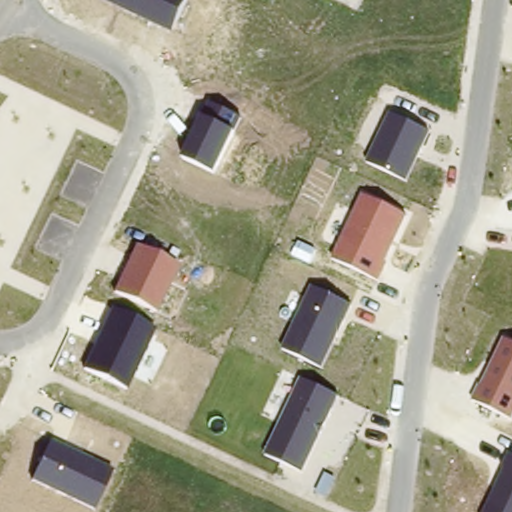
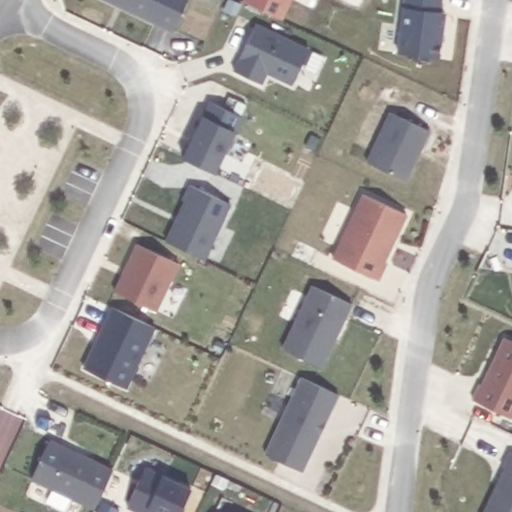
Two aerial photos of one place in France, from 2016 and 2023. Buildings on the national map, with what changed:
unchanged [(173,34),(101,0),(188,0),(173,34)]
new [(242,0),(293,0),(283,21),(241,1),(242,0)]
new [(397,49),(381,47),(383,26),(400,28),(402,6),(404,6),(404,0),(442,0),(442,11),(446,12),(442,59),(397,53),(397,49)]
new [(255,22),(310,47),(293,86),(267,74),(262,84),(234,71),(255,22)]
unchanged [(207,102),(242,118),(215,176),(182,158),(207,102)]
unchanged [(430,131),(407,182),(366,163),(388,114),(430,131)]
new [(183,201),(182,200),(190,185),(232,205),(207,261),(165,241),(183,201)]
unchanged [(407,215),(385,262),(387,263),(380,282),(331,258),(362,195),(407,215)]
unchanged [(180,264),(157,313),(113,293),(135,245),(180,264)]
unchanged [(281,349),(311,286),(353,305),(322,368),(281,349)]
unchanged [(157,329),(128,390),(83,369),(111,308),(157,329)]
unchanged [(502,337),(512,342),(512,420),(472,401),(502,337)]
unchanged [(300,378),(340,397),(302,473),(265,454),(300,378)]
unchanged [(113,469),(95,511),(30,482),(50,440),(113,469)]
unchanged [(512,454),(512,512),(483,512),(509,453),(512,454)]
new [(163,474),(191,488),(181,512),(136,512),(128,508),(146,467),(163,474)]

